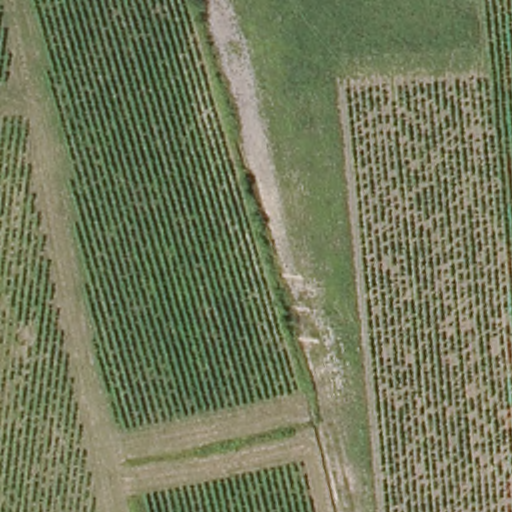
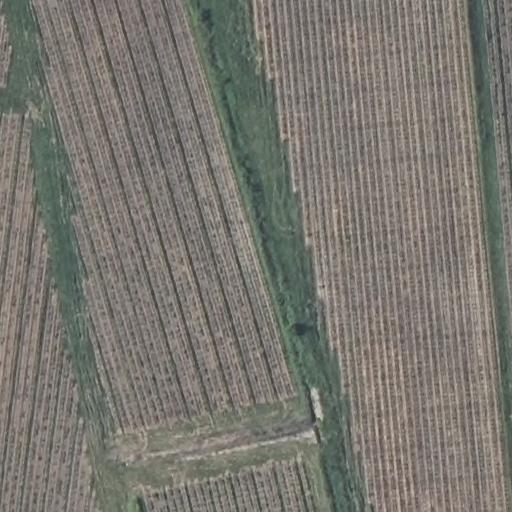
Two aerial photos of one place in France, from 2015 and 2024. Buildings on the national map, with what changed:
[]

